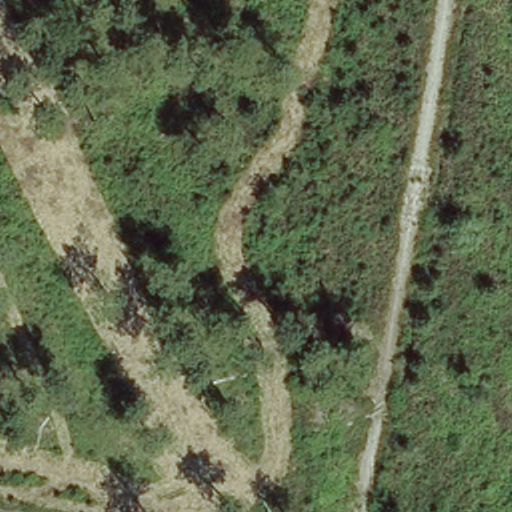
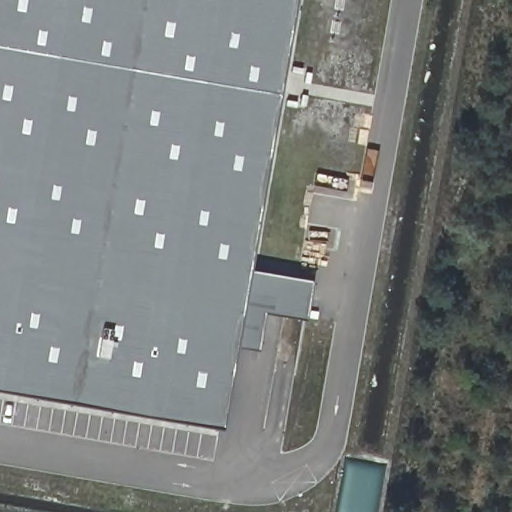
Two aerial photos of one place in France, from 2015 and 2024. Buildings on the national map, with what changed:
new [(0,384),(0,0),(294,0),(249,268),(318,280),(312,316),(270,309),(263,346),(236,343),(222,422),(0,384)]

